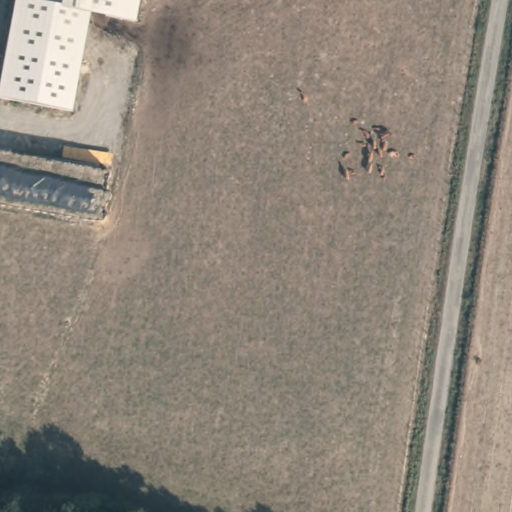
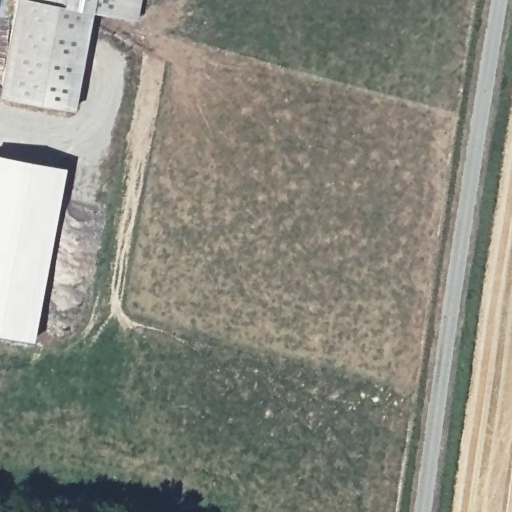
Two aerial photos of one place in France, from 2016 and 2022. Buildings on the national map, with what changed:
unchanged [(89,12),(71,109),(0,97),(0,79),(15,0),(139,0),(135,21),(89,12)]
new [(31,342),(0,336),(0,155),(63,166),(31,342)]

